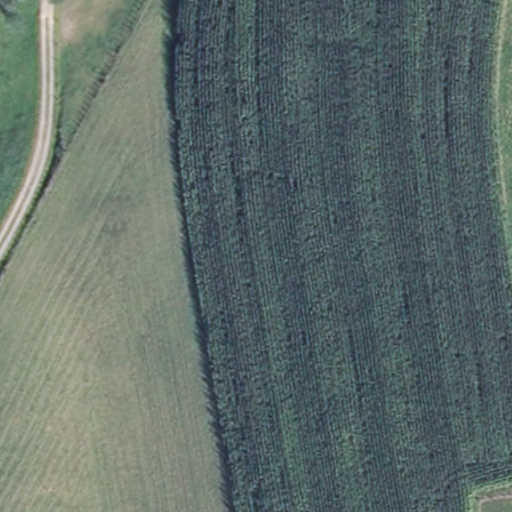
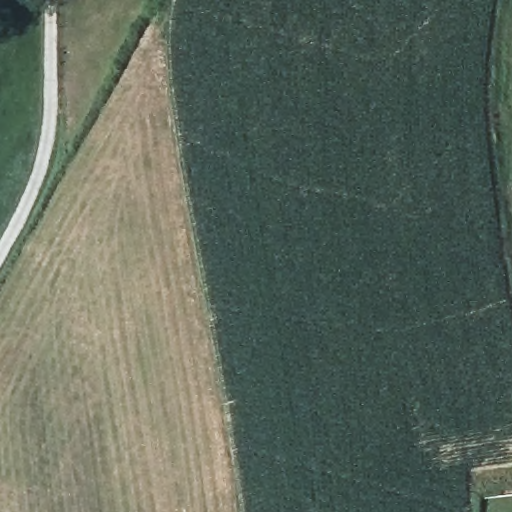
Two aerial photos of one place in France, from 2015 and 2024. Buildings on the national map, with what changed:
[]

